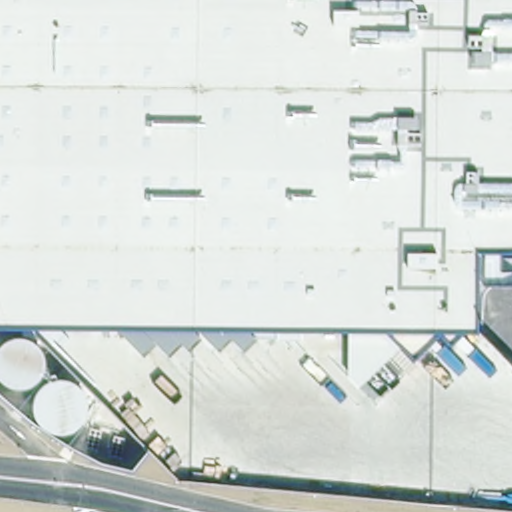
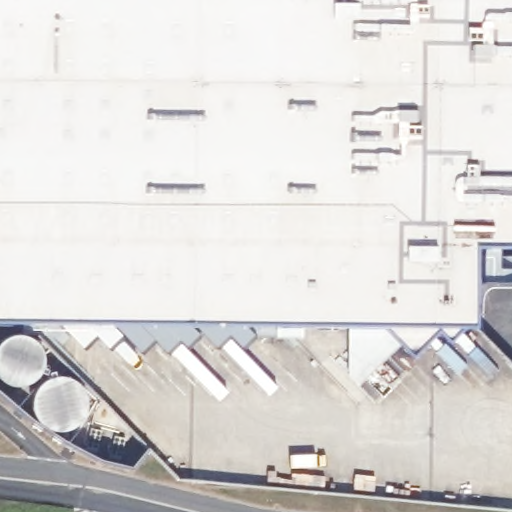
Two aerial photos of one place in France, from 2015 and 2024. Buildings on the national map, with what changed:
unchanged [(472,279),(472,329),(0,320),(0,0),(512,0),(512,281),(472,279)]
unchanged [(257,487),(177,481),(148,448),(131,469),(101,461),(67,443),(32,421),(0,395),(0,320),(472,329),(487,340),(512,366),(512,510),(257,487)]

